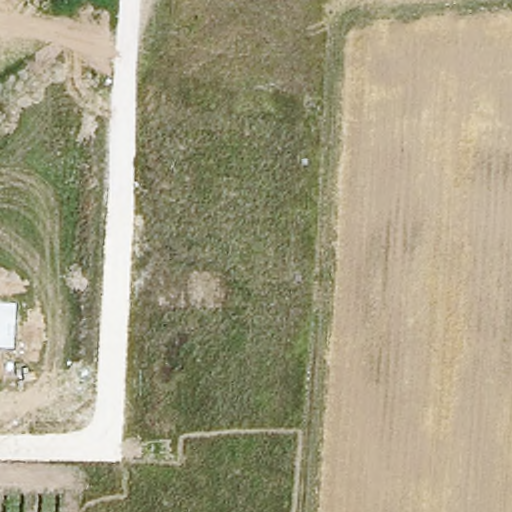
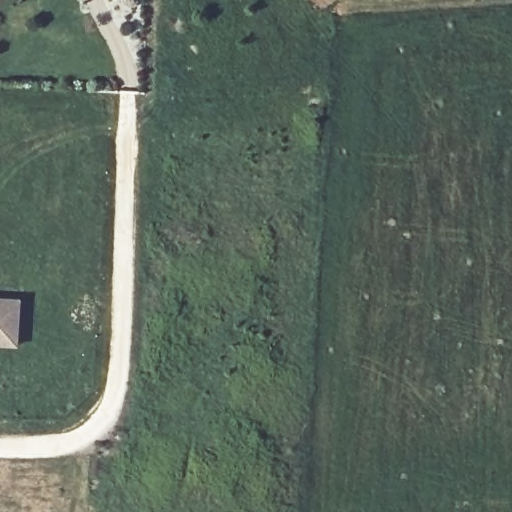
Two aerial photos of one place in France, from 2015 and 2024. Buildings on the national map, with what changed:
new [(20,300),(17,350),(0,348),(0,298),(20,300)]

